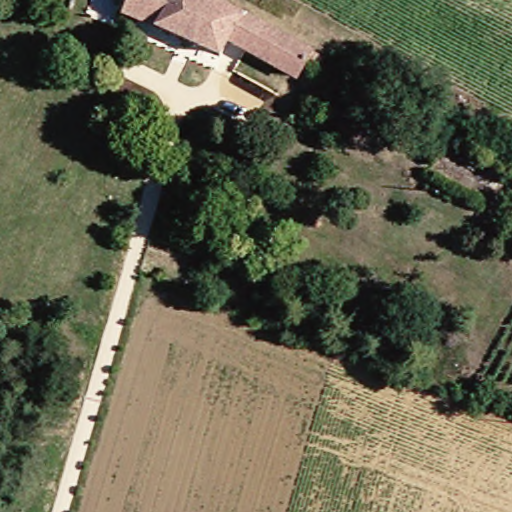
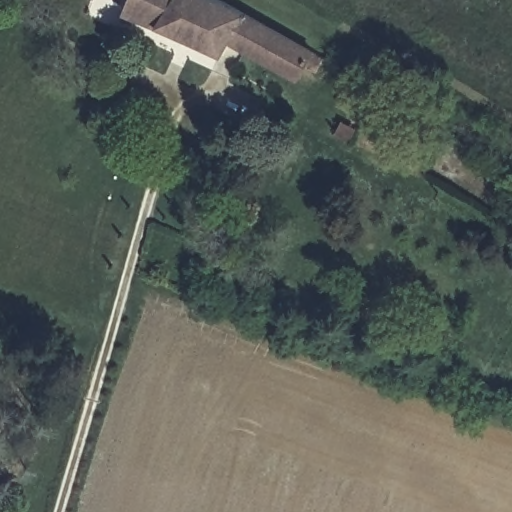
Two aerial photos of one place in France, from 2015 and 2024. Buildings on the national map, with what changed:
unchanged [(333,59),(324,72),(312,67),(304,79),(234,44),(225,59),(129,7),(132,0),(230,0),(333,59)]

